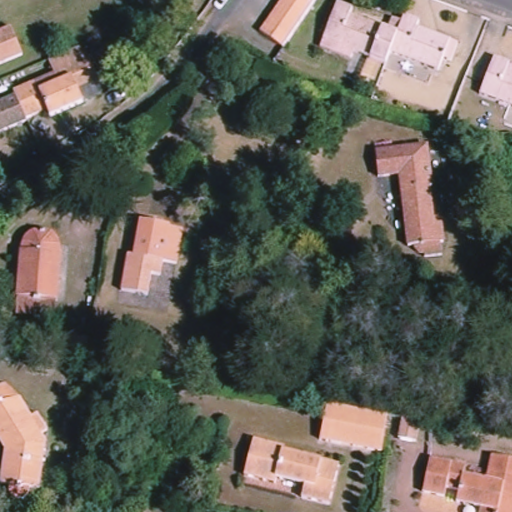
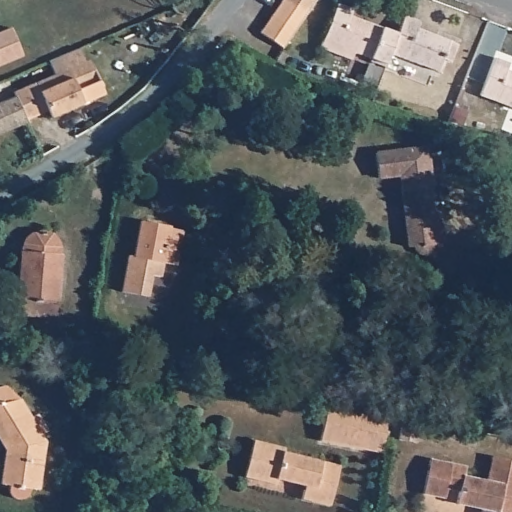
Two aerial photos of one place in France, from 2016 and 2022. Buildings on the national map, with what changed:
unchanged [(289,49),(265,35),(286,0),(317,0),(289,49)]
unchanged [(423,27),(420,34),(460,51),(455,66),(446,63),(442,75),(395,57),(390,69),(327,45),(342,6),(357,12),(355,19),(393,35),(398,23),(405,26),(406,21),(423,27)]
unchanged [(0,64),(0,31),(3,29),(12,51),(15,57),(0,64)]
unchanged [(90,99),(81,103),(49,118),(46,111),(25,121),(20,111),(12,96),(11,94),(53,75),(45,57),(76,44),(84,60),(87,60),(95,81),(100,93),(90,99)]
unchanged [(498,59),(512,65),(512,71),(511,72),(512,73),(512,108),(484,97),(498,59)]
unchanged [(25,122),(0,134),(0,102),(12,96),(20,111),(25,121),(25,122)]
unchanged [(432,192),(428,193),(432,223),(438,222),(442,245),(438,246),(440,258),(423,261),(423,256),(420,256),(416,255),(415,253),(413,252),(413,251),(412,249),(406,250),(397,179),(378,182),(375,156),(425,149),(432,192)]
unchanged [(156,275),(152,297),(126,293),(131,259),(132,257),(136,257),(142,221),(172,226),(171,229),(184,231),(181,246),(179,264),(166,263),(166,265),(164,277),(156,275)]
unchanged [(22,314),(24,298),(27,247),(30,242),(32,238),(35,235),(41,233),(47,231),(54,232),(58,234),(63,237),(66,242),(70,246),(69,254),(65,301),(63,318),(22,314)]
unchanged [(10,391),(26,402),(28,404),(31,408),(38,422),(45,419),(53,436),(47,439),(51,446),(45,494),(35,492),(34,497),(32,501),(29,504),(25,505),(21,504),(16,502),(15,497),(15,493),(17,490),(8,489),(14,454),(13,453),(12,451),(0,433),(0,393),(10,391)]
unchanged [(391,420),(385,455),(325,443),(332,409),(391,420)]
unchanged [(411,441),(397,438),(401,418),(403,418),(415,420),(411,441)]
unchanged [(335,505),(301,498),(303,486),(277,480),(276,486),(245,480),(252,444),(285,450),(284,454),(344,466),(335,505)]
unchanged [(459,506),(461,493),(450,490),(447,499),(425,494),(432,460),(467,467),(465,475),(490,480),(494,457),(512,461),(512,512),(482,512),(482,511),(459,506)]

